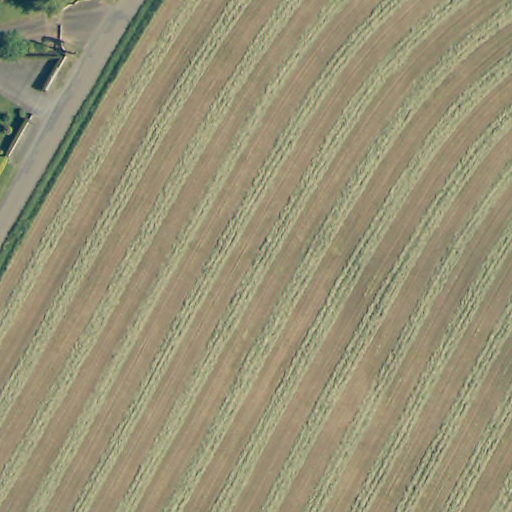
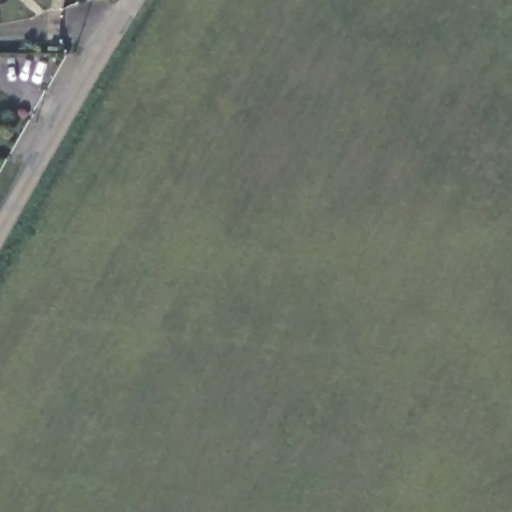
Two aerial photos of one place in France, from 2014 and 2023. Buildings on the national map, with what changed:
[]

